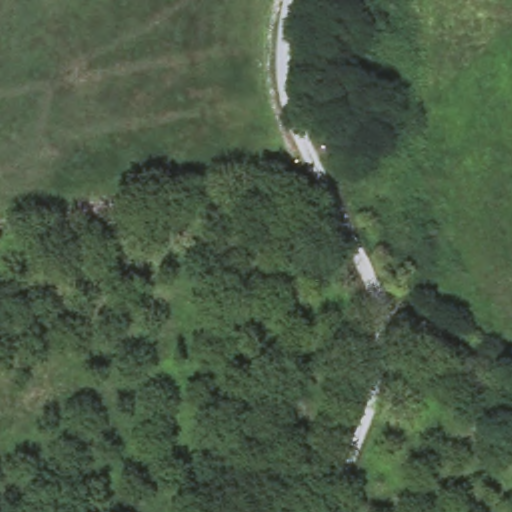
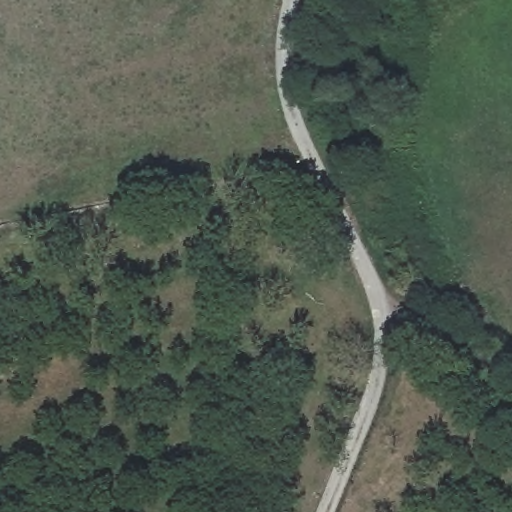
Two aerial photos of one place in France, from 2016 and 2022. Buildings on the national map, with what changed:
unchanged [(377,177),(389,209),(367,215),(357,183),(377,177)]

